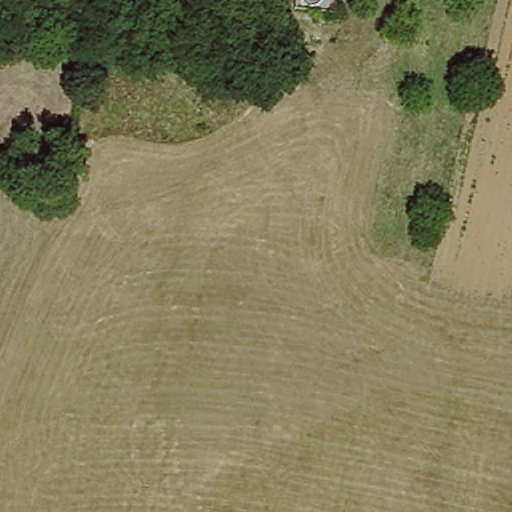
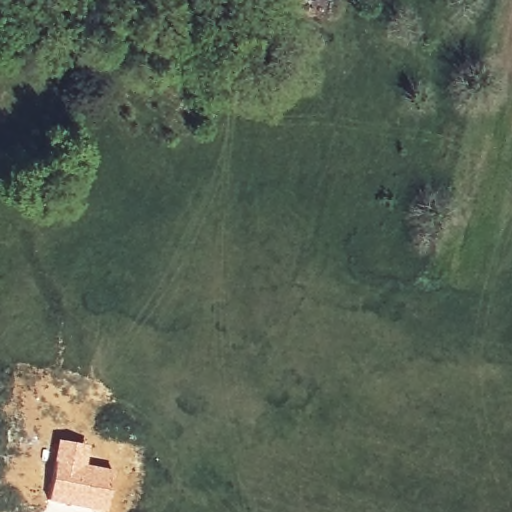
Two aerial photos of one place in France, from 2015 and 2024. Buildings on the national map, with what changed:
new [(88,444),(86,463),(113,469),(107,512),(101,512),(47,502),(56,438),(88,444)]

